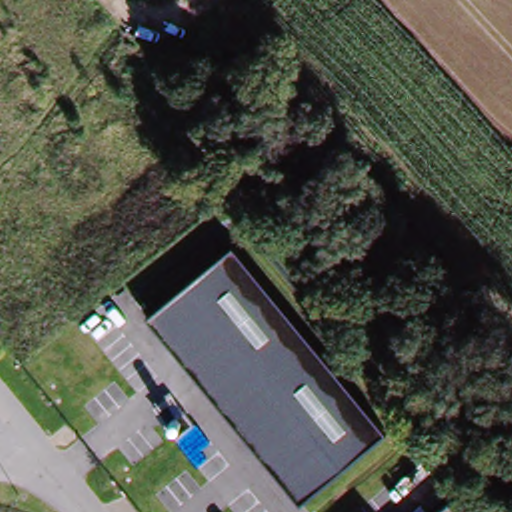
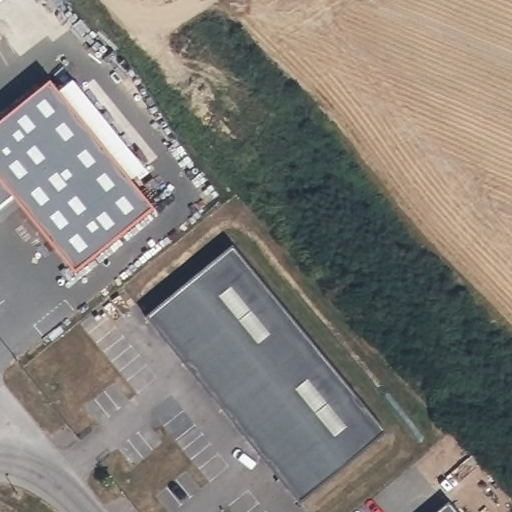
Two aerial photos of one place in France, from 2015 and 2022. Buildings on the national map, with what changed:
new [(158,221),(81,284),(19,209),(0,224),(0,138),(54,94),(158,221)]
unchanged [(387,433),(300,505),(150,318),(233,249),(387,433)]
new [(167,396),(182,413),(165,428),(150,410),(167,396)]
unchanged [(457,512),(439,512),(450,503),(457,512)]

